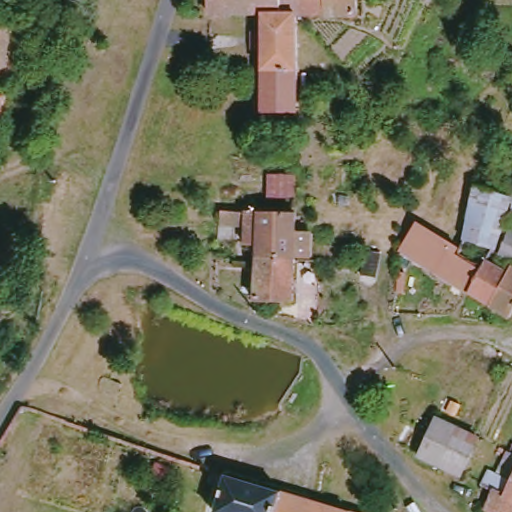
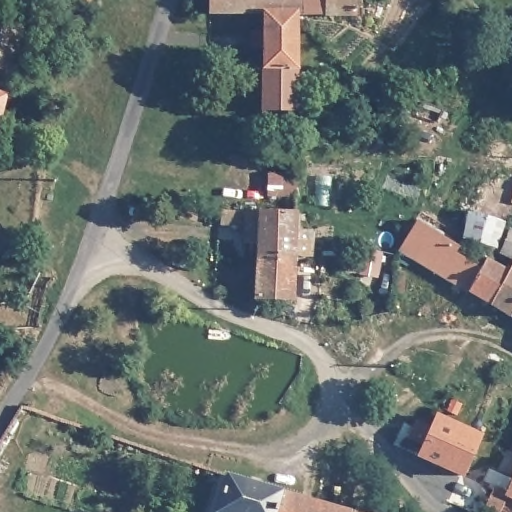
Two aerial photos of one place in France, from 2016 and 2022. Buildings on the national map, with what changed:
unchanged [(304,15),(304,17),(302,113),(265,110),(266,79),(267,39),(267,16),(216,15),(217,0),(304,0),(304,15)]
unchanged [(360,17),(336,16),(304,15),(304,0),(360,0),(360,17)]
unchanged [(27,29),(0,132),(0,21),(27,29)]
unchanged [(300,195),(270,195),(270,173),(300,173),(300,195)]
unchanged [(495,268),(493,270),(468,254),(482,189),(512,196),(512,209),(501,257),(495,268)]
unchanged [(300,240),(313,240),(314,266),(298,265),(297,298),(298,305),(259,304),(261,263),(260,249),(249,249),(247,229),(223,230),(223,215),(246,215),(245,212),(300,216),(300,240)]
unchanged [(468,254),(493,270),(476,298),(440,276),(407,255),(424,226),(468,254)]
unchanged [(512,249),(512,265),(507,263),(512,249)]
unchanged [(512,277),(512,321),(488,305),(477,300),(476,298),(493,270),(495,268),(512,277)]
unchanged [(423,457),(440,415),(481,435),(468,476),(423,457)]
unchanged [(354,512),(221,512),(231,474),(354,510),(354,512)]
unchanged [(507,493),(512,483),(512,512),(491,512),(488,510),(498,488),(507,493)]

